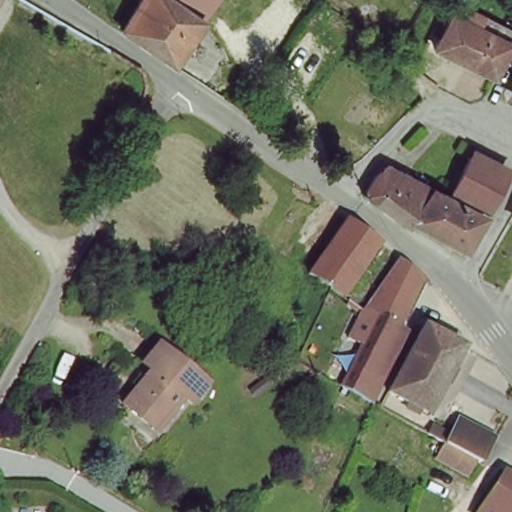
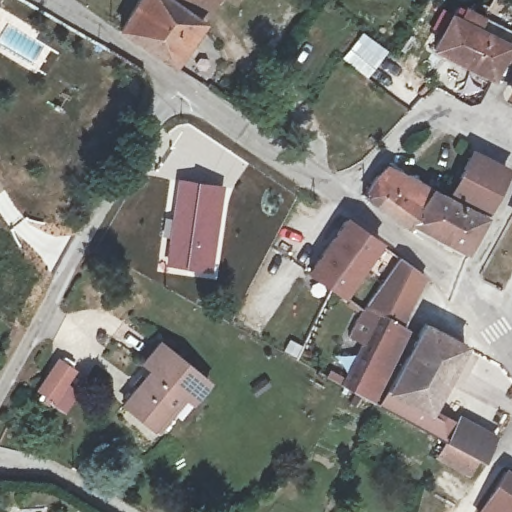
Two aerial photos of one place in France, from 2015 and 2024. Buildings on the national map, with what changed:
unchanged [(139,0),(202,0),(192,17),(198,23),(170,67),(126,39),(118,33),(139,0)]
unchanged [(212,3),(207,0),(214,0),(212,3)]
unchanged [(488,89),(430,59),(453,16),(477,27),(509,42),(505,53),(488,89)]
unchanged [(451,196),(469,159),(504,179),(487,212),(451,196)]
unchanged [(366,201),(383,176),(483,221),(469,253),(417,227),(413,234),(366,201)]
new [(166,232),(174,177),(227,185),(216,276),(164,268),(166,232)]
unchanged [(331,237),(349,217),(381,241),(369,276),(353,304),(329,290),(306,276),(331,237)]
unchanged [(509,226),(512,220),(512,228),(509,226)]
demolished [(512,277),(512,282),(508,292),(479,280),(487,265),(512,277)]
unchanged [(429,283),(367,403),(341,390),(376,319),(383,322),(409,268),(429,283)]
unchanged [(433,417),(395,397),(429,332),(466,352),(433,417)]
unchanged [(195,407),(183,397),(155,431),(124,406),(154,372),(148,366),(163,347),(213,387),(195,407)]
new [(58,358),(73,368),(54,401),(38,391),(58,358)]
unchanged [(434,461),(441,447),(426,440),(434,427),(457,437),(462,428),(491,445),(490,447),(479,467),(474,465),(467,478),(434,461)]
unchanged [(512,480),(512,512),(483,512),(503,475),(512,480)]

